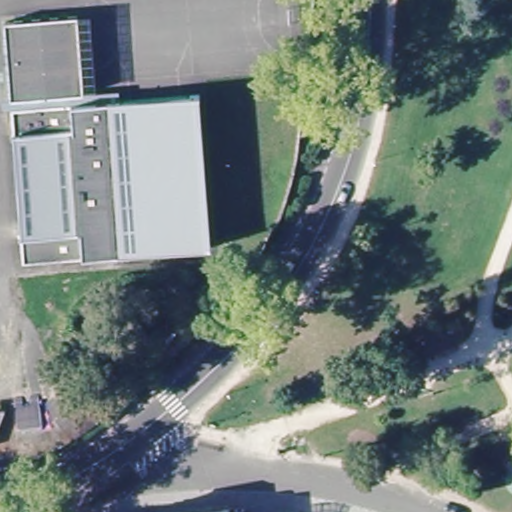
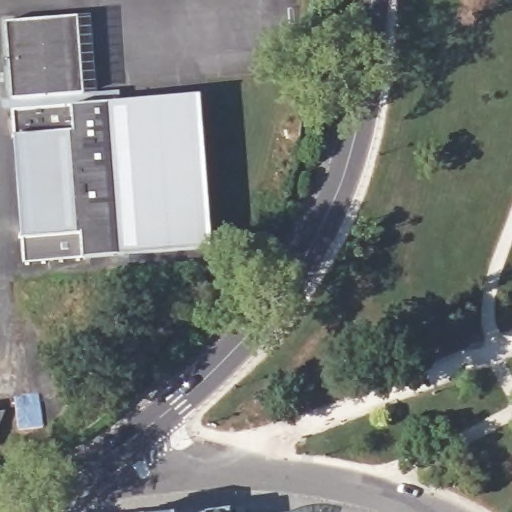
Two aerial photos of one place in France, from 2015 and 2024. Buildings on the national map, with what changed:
unchanged [(85,90),(110,88),(121,87),(123,104),(202,97),(215,250),(85,259),(25,263),(24,238),(13,109),(2,110),(2,100),(12,99),(7,21),(80,16),(85,90)]
unchanged [(111,379),(139,360),(148,373),(125,397),(102,418),(75,436),(64,443),(50,422),(111,379)]
unchanged [(229,510),(230,512),(211,512),(222,510),(229,510)]

